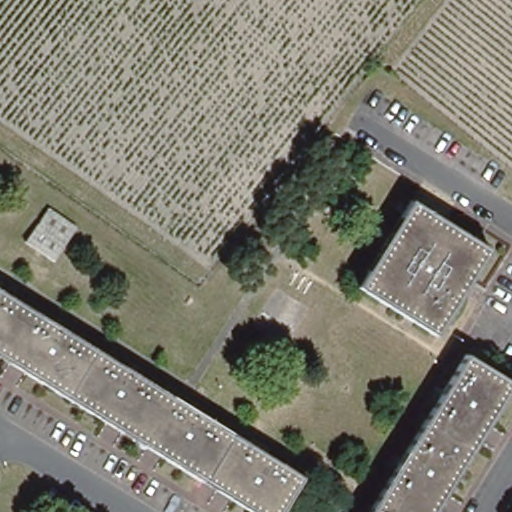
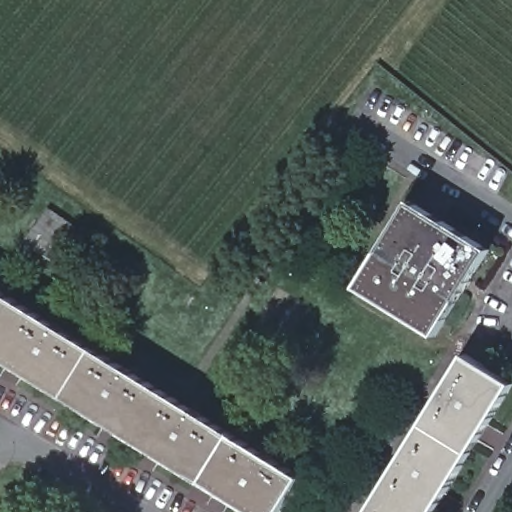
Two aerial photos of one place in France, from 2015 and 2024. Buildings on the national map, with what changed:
unchanged [(437,338),(358,290),(412,200),(490,249),(437,338)]
unchanged [(78,230),(57,263),(30,244),(53,213),(78,230)]
unchanged [(134,440),(5,360),(0,357),(0,290),(89,344),(204,416),(299,474),(276,512),(251,512),(134,440)]
unchanged [(512,384),(512,392),(442,507),(439,512),(373,512),(429,420),(469,358),(512,384)]

